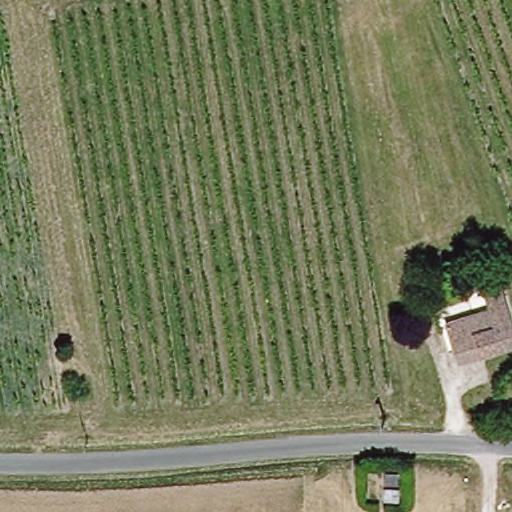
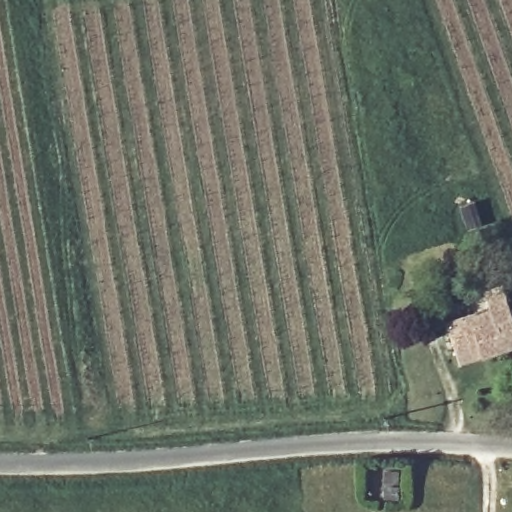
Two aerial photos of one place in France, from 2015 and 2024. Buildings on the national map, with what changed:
unchanged [(448,324),(489,312),(484,296),(506,290),(512,311),(512,348),(459,363),(448,324)]

